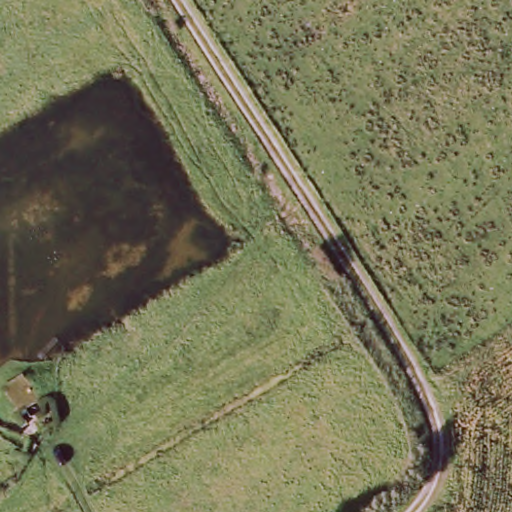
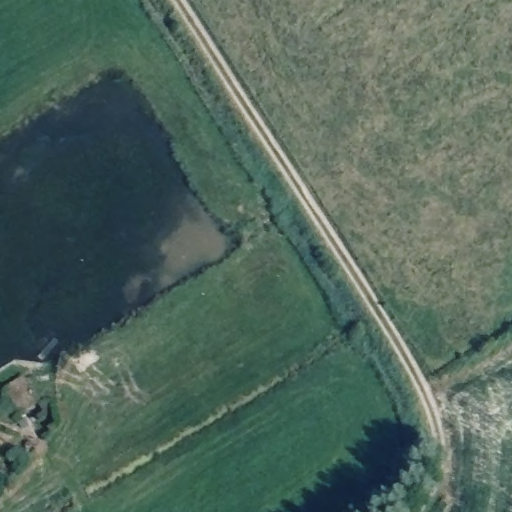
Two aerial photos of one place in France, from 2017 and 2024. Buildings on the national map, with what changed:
unchanged [(45,392),(35,402),(42,411),(31,420),(23,413),(8,423),(0,413),(0,405),(35,379),(45,392)]

